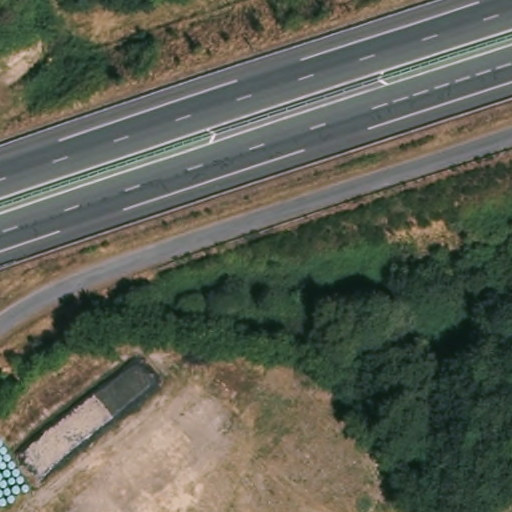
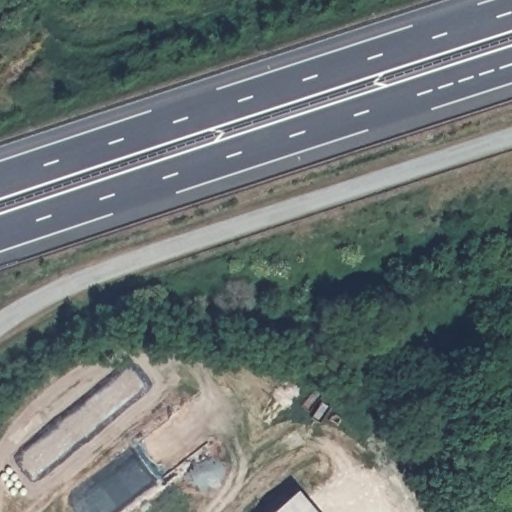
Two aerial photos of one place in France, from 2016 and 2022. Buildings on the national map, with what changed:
new [(297,491),(314,512),(271,512),(297,491)]

